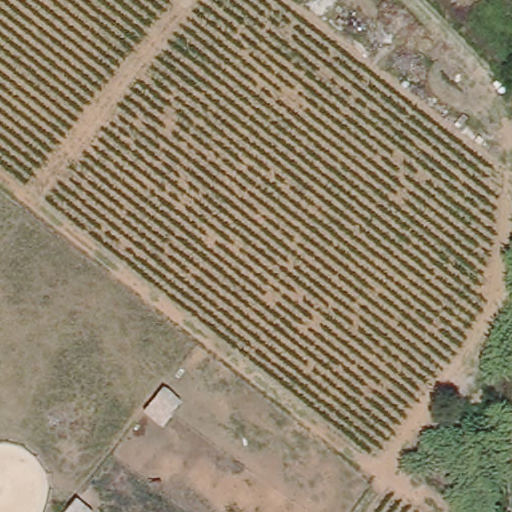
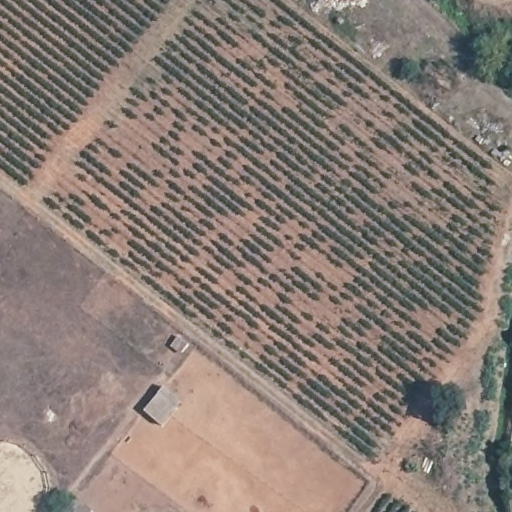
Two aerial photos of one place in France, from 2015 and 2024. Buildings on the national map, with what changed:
[]

